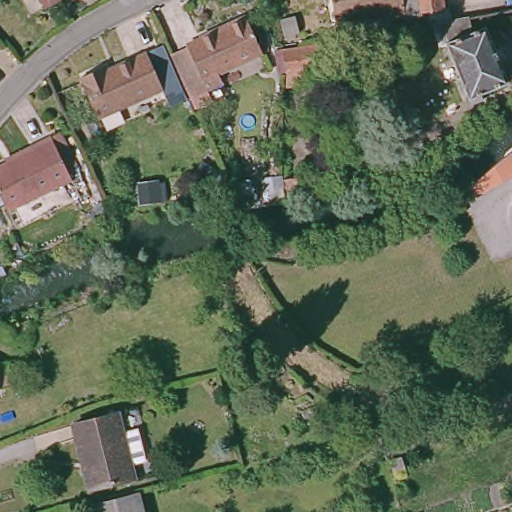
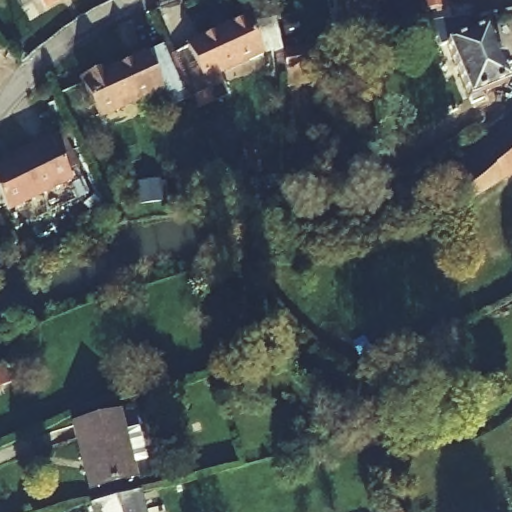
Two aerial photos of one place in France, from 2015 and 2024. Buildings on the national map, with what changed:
unchanged [(49,8),(42,0),(59,0),(49,8)]
unchanged [(334,18),(331,0),(439,0),(440,5),(415,9),(402,12),(387,14),(386,9),(334,18)]
unchanged [(176,54),(189,48),(187,46),(247,17),(264,52),(222,74),(227,83),(210,92),(196,96),(176,54)]
unchanged [(460,18),(467,33),(480,28),(503,82),(467,97),(443,43),(436,46),(427,24),(460,18)]
unchanged [(318,67),(319,68),(289,74),(287,74),(284,51),(315,45),(318,67)]
unchanged [(160,90),(97,119),(77,77),(101,67),(104,73),(144,54),(160,90)]
unchanged [(72,180),(5,212),(0,201),(0,166),(35,149),(32,144),(50,136),(72,180)]
unchanged [(468,185),(485,174),(512,153),(512,175),(473,195),(468,185)]
unchanged [(299,178),(301,188),(285,190),(284,179),(299,178)]
unchanged [(119,433),(134,430),(141,461),(127,465),(130,480),(88,489),(80,456),(76,456),(69,425),(114,414),(119,433)]
unchanged [(92,512),(90,504),(139,493),(144,512),(92,512)]

